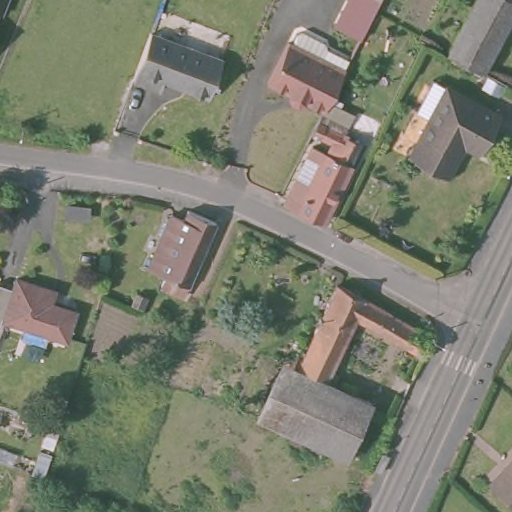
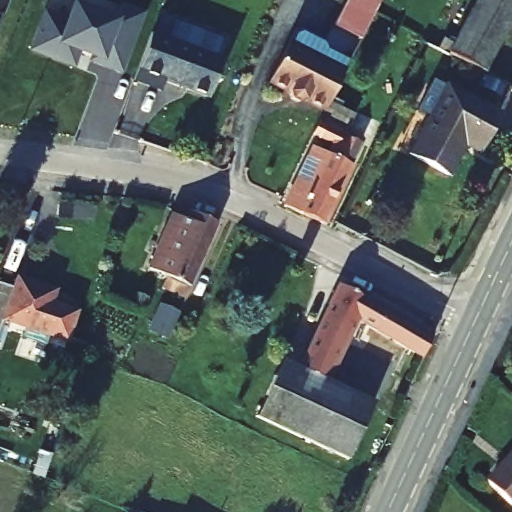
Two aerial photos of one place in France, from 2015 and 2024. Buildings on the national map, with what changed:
unchanged [(4,17),(0,16),(0,0),(11,0),(4,17)]
new [(41,7),(63,16),(70,0),(113,16),(118,2),(140,10),(117,68),(87,56),(88,53),(74,47),(68,62),(48,54),(49,52),(27,44),(41,7)]
unchanged [(361,34),(335,21),(345,0),(378,0),(375,8),(361,34)]
unchanged [(477,0),(510,0),(512,1),(512,17),(491,59),(486,69),(451,49),(477,0)]
unchanged [(152,32),(225,60),(210,99),(162,82),(160,90),(134,80),(152,32)]
unchanged [(305,96),(303,100),(291,95),(293,91),(271,80),(290,40),(345,65),(325,105),(305,96)]
unchanged [(486,69),(491,59),(512,69),(512,82),(486,69)]
unchanged [(434,111),(425,107),(438,82),(502,114),(482,154),(463,145),(448,174),(411,156),(434,111)]
unchanged [(323,110),(348,121),(344,130),(361,138),(322,219),(286,200),(313,143),(339,153),(345,141),(315,128),(323,110)]
unchanged [(165,270),(168,260),(150,251),(173,196),(187,200),(190,195),(222,207),(188,280),(165,270)]
unchanged [(300,363),(335,278),(406,312),(433,330),(427,349),(358,313),(329,375),(300,363)]
unchanged [(29,295),(33,282),(71,295),(68,308),(91,315),(82,343),(26,323),(17,350),(0,344),(0,327),(13,288),(29,295)]
unchanged [(331,377),(375,401),(346,461),(255,415),(285,355),(298,362),(331,377)]
unchanged [(512,457),(512,502),(490,482),(512,457)]

